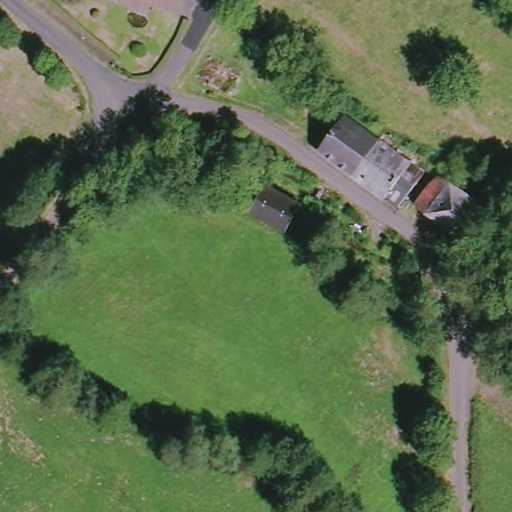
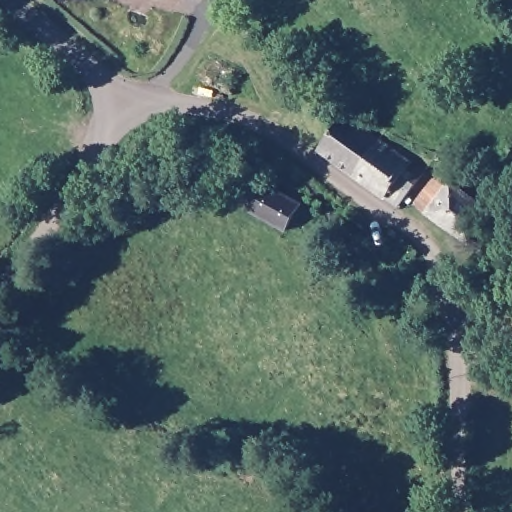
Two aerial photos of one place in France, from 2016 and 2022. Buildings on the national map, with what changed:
unchanged [(321,147),(345,113),(387,143),(364,177),(321,147)]
unchanged [(404,205),(364,177),(387,143),(426,170),(404,205)]
unchanged [(498,215),(476,247),(423,210),(445,178),(498,215)]
unchanged [(300,203),(285,229),(249,210),(264,183),(300,203)]

